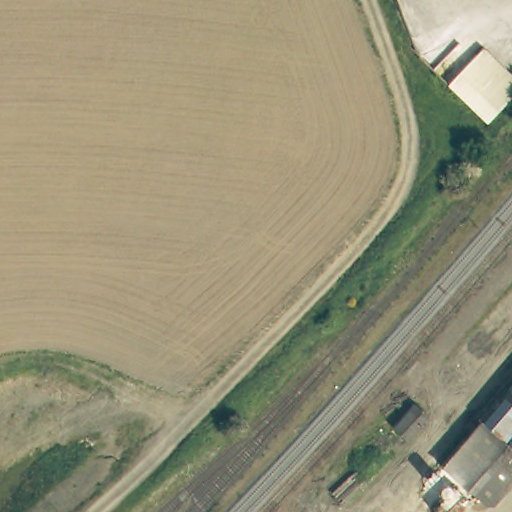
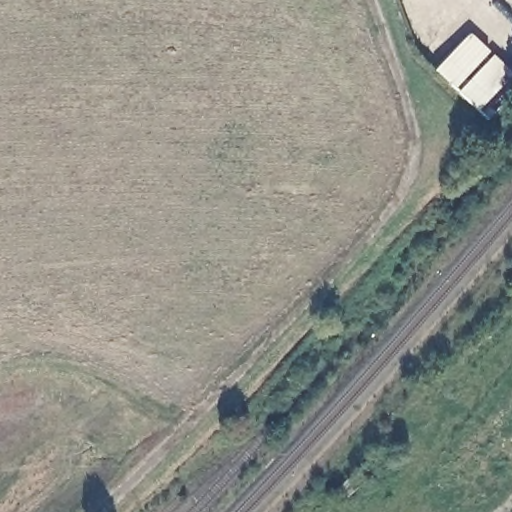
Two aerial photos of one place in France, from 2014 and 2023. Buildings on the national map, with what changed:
unchanged [(512,76),(512,96),(486,123),(445,85),(483,47),(512,76)]
demolished [(490,506),(444,466),(512,386),(512,480),(490,506)]
unchanged [(390,428),(411,404),(424,416),(403,439),(390,428)]

